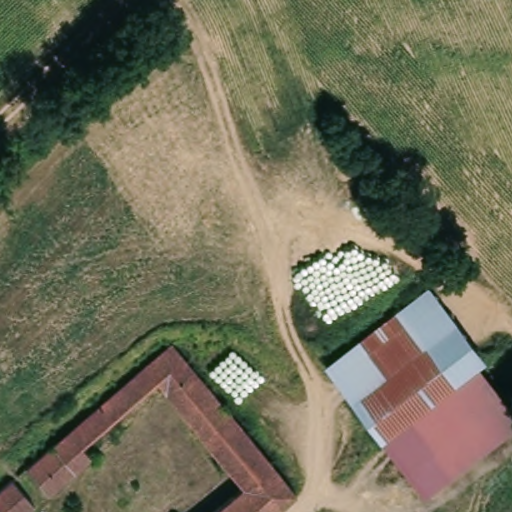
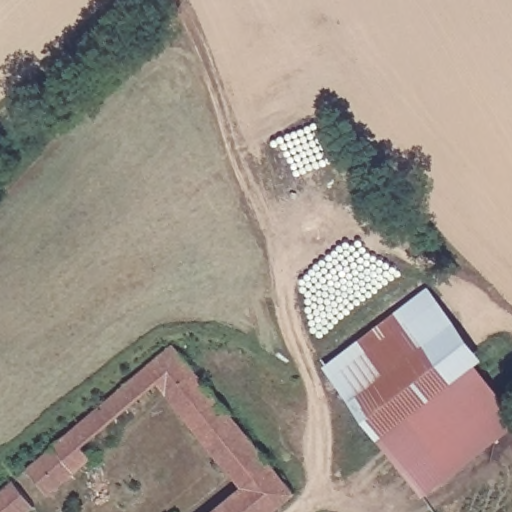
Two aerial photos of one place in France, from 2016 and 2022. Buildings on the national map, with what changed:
unchanged [(325,367),(430,288),(512,398),(512,430),(425,497),(325,367)]
unchanged [(245,489),(164,383),(84,445),(90,455),(47,489),(40,482),(26,466),(55,443),(73,429),(120,391),(122,389),(135,378),(181,340),(184,344),(195,357),(195,358),(224,335),(234,347),(242,339),(252,353),(214,383),(288,481),(304,468),(315,482),(298,499),(293,503),(281,512),(215,512),(245,489)]
unchanged [(35,501),(23,512),(0,512),(0,489),(15,476),(35,501)]

